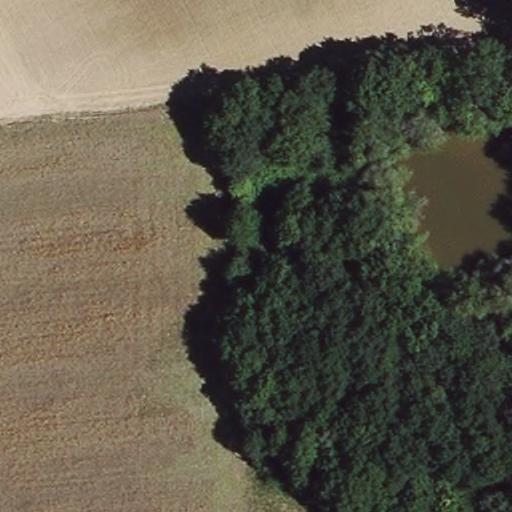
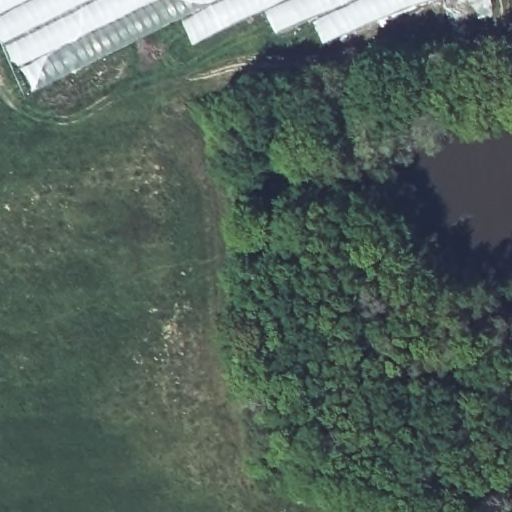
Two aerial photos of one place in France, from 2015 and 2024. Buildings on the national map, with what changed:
new [(390,15),(321,44),(310,20),(275,35),(262,12),(192,45),(180,21),(28,94),(20,79),(17,80),(0,45),(0,0),(433,0),(390,15)]

